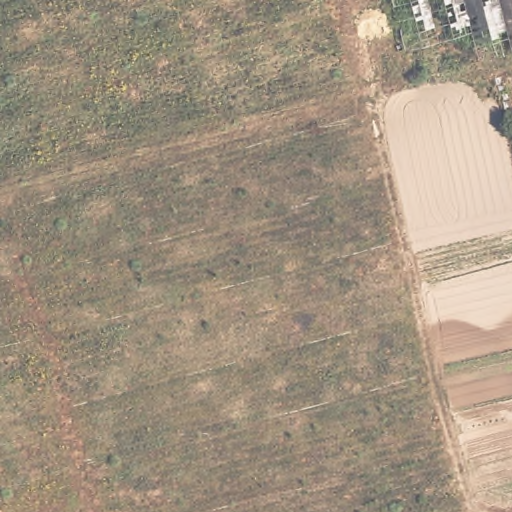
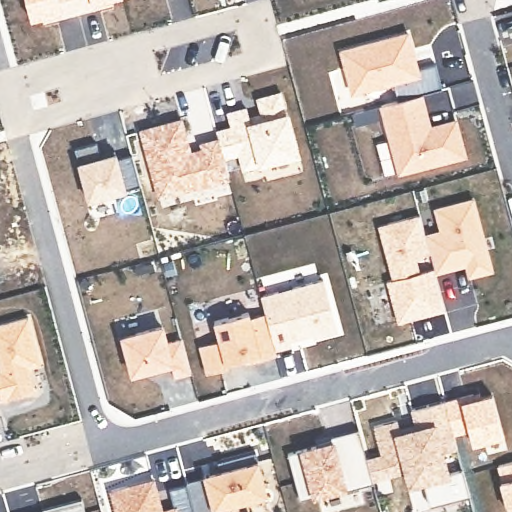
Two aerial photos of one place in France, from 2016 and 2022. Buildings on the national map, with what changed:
new [(51,19),(49,14),(31,19),(25,0),(105,0),(106,4),(51,19)]
new [(397,102),(393,84),(350,95),(338,49),(410,31),(419,69),(436,64),(442,89),(418,96),(397,102)]
demolished [(512,63),(510,55),(512,54),(512,63)]
new [(418,96),(423,113),(418,114),(422,130),(453,122),(462,157),(397,175),(378,107),(418,96)]
new [(187,156),(201,152),(199,146),(216,142),(214,135),(229,131),(225,119),(244,113),(247,123),(261,119),(257,104),(279,98),(296,158),(240,173),(236,159),(222,164),(227,182),(190,192),(179,185),(154,193),(138,134),(178,123),(187,156)]
new [(93,145),(97,160),(112,156),(113,161),(129,157),(137,188),(85,203),(71,151),(93,145)]
new [(443,235),(436,210),(471,201),(490,272),(468,278),(464,263),(450,267),(451,269),(434,274),(432,270),(428,255),(424,240),(443,235)]
new [(418,217),(424,240),(428,255),(414,259),(418,274),(432,270),(434,274),(444,312),(396,324),(385,284),(391,282),(376,228),(418,217)]
new [(321,283),(335,335),(312,341),(311,338),(288,344),(290,349),(273,353),(263,316),(259,299),(321,283)]
new [(242,362),(224,367),(225,372),(205,377),(198,349),(218,344),(213,324),(247,315),(249,320),(263,316),(273,353),(275,358),(258,363),(244,367),(242,362)]
new [(25,320),(38,368),(25,371),(32,394),(0,403),(0,327),(25,320)]
new [(159,329),(164,346),(179,341),(188,376),(172,380),(168,367),(152,371),(154,376),(131,382),(125,359),(120,361),(115,341),(159,329)]
new [(472,397),(473,402),(496,397),(505,435),(472,444),(469,430),(456,433),(449,404),(472,397)]
new [(422,484),(408,488),(405,474),(371,484),(365,461),(380,457),(372,429),(395,423),(399,435),(415,431),(410,412),(443,403),(456,450),(441,454),(447,475),(461,471),(469,497),(444,504),(428,508),(422,484)]
new [(314,444),(329,439),(357,432),(365,461),(371,484),(372,486),(344,493),(343,491),(299,503),(286,457),(315,449),(314,444)]
new [(202,481),(201,479),(218,474),(216,465),(254,454),(266,499),(229,509),(229,512),(191,512),(185,488),(184,486),(202,481)]
new [(512,510),(508,511),(501,482),(503,482),(500,468),(512,464),(512,510)]
new [(151,483),(159,512),(115,512),(110,494),(151,483)]
new [(167,493),(185,488),(191,512),(172,512),(167,493)]
new [(79,502),(82,512),(43,512),(79,502)]

